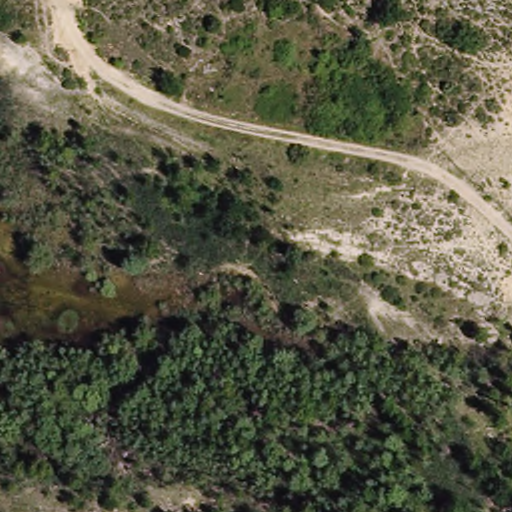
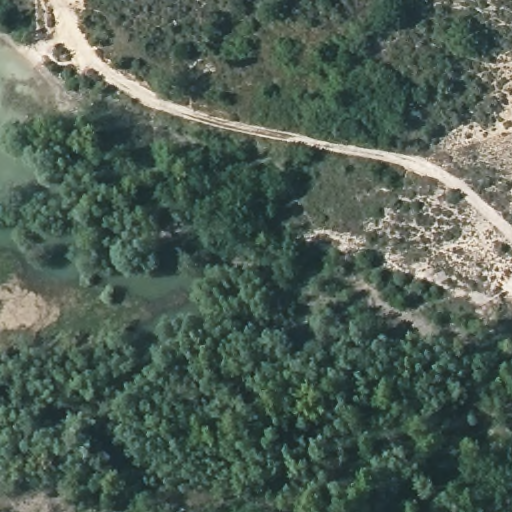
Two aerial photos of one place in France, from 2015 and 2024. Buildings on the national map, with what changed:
[]

